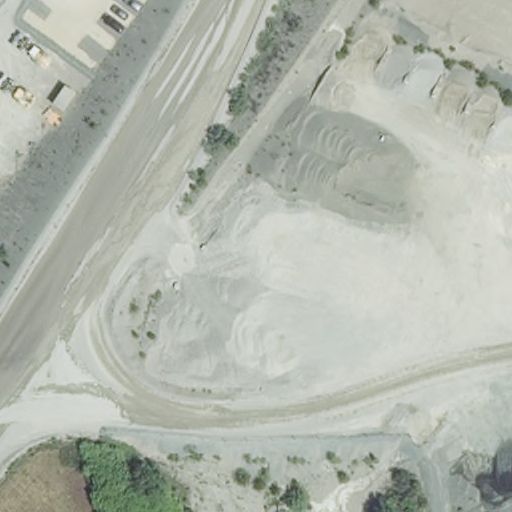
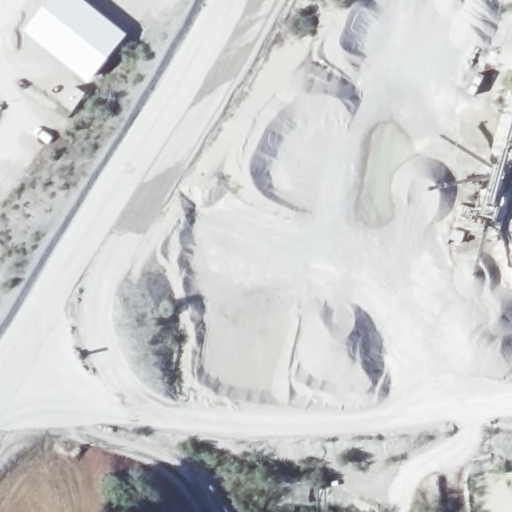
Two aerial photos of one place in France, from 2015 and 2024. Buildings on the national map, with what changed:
new [(85,0),(127,33),(89,83),(22,30),(47,0),(85,0)]
unchanged [(69,84),(79,91),(67,108),(57,101),(69,84)]

